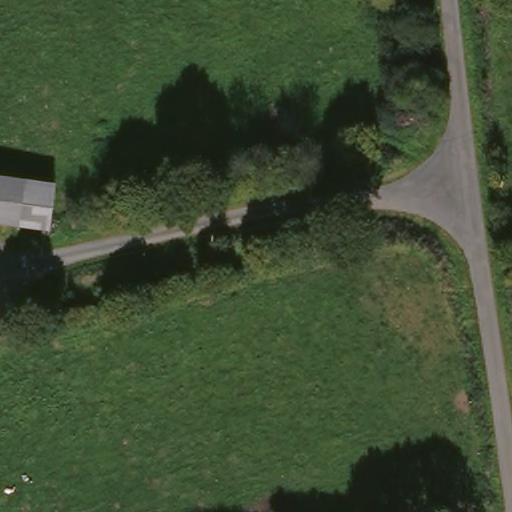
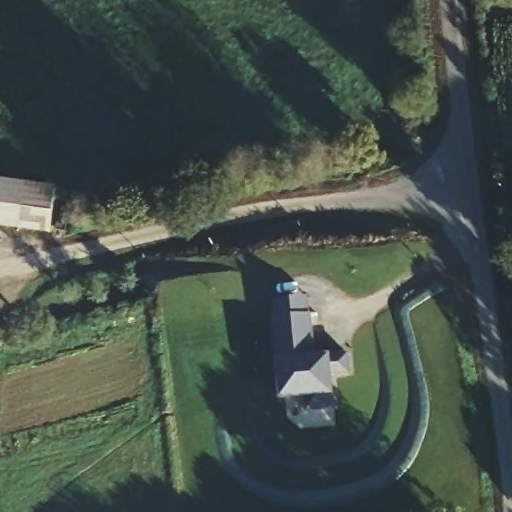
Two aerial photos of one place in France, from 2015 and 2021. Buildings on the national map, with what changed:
unchanged [(59,181),(47,240),(0,232),(0,172),(59,181)]
unchanged [(74,291),(108,284),(113,306),(79,314),(74,291)]
new [(311,357),(346,352),(348,371),(328,373),(331,405),(304,408),(303,395),(279,397),(273,316),(309,312),(311,357)]

